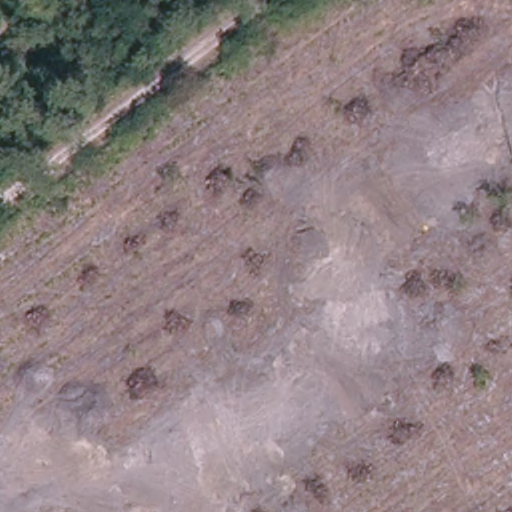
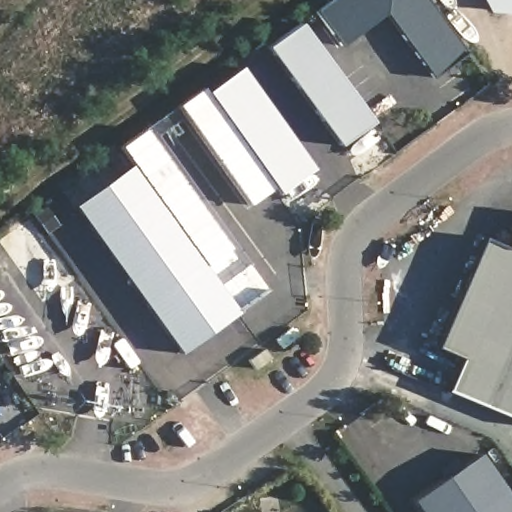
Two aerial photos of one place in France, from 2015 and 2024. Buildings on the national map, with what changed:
new [(315,12),(332,0),(428,0),(466,52),(433,77),(385,13),(341,46),(315,12)]
new [(487,9),(483,0),(512,0),(512,10),(487,9)]
new [(371,122),(339,147),(266,48),(299,25),(371,122)]
new [(205,86),(242,65),(313,165),(251,208),(175,104),(205,86)]
new [(127,164),(114,147),(142,130),(241,269),(246,266),(262,288),(175,356),(70,205),(127,164)]
new [(459,358),(436,348),(482,240),(507,251),(512,240),(512,419),(444,392),(459,358)]
new [(420,512),(412,501),(479,455),(512,502),(512,512),(420,512)]

